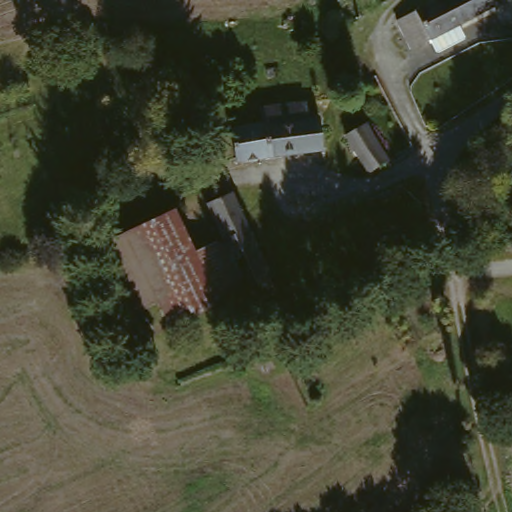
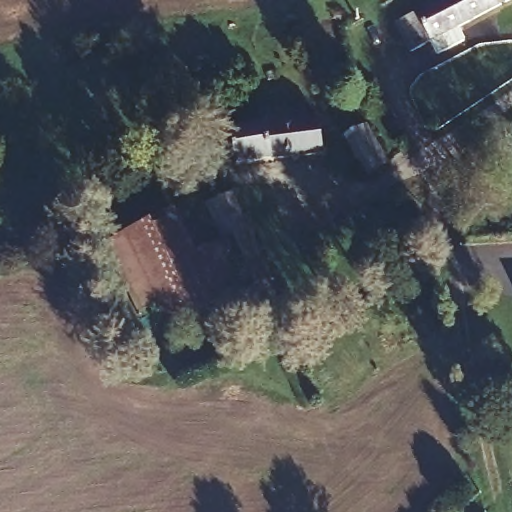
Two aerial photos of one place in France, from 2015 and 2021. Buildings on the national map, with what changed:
unchanged [(438,40),(418,51),(402,23),(408,20),(445,0),(454,0),(497,0),(512,0),(512,2),(509,4),(501,7),(469,25),(464,27),(470,37),(444,51),(438,40)]
unchanged [(307,116),(317,116),(322,148),(237,160),(231,126),(263,122),(262,107),(283,105),(304,102),(307,116)]
unchanged [(395,167),(374,177),(343,120),(363,109),(395,167)]
unchanged [(235,184),(276,270),(273,272),(279,285),(258,295),(253,285),(244,288),(220,241),(224,239),(205,196),(235,184)]
unchanged [(420,229),(394,240),(375,203),(401,190),(420,229)]
unchanged [(118,289),(129,284),(110,239),(177,209),(198,251),(221,299),(140,336),(118,289)]
unchanged [(244,288),(241,290),(221,299),(198,251),(220,241),(244,288)]

